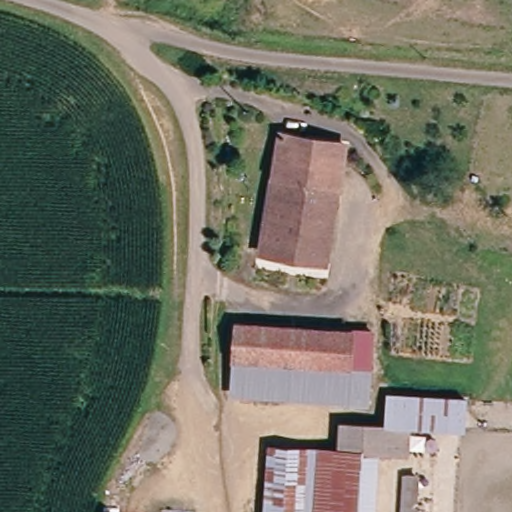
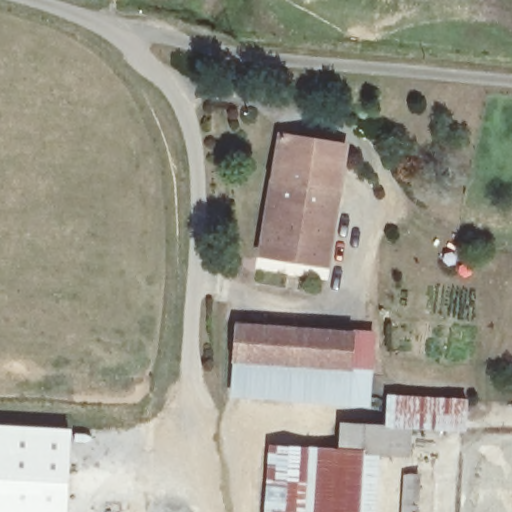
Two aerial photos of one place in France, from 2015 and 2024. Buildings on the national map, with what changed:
unchanged [(332,264),(267,256),(279,150),(280,140),(347,146),(344,166),(332,264)]
unchanged [(334,372),(241,367),(241,330),(373,335),(368,401),(332,399),(334,372)]
unchanged [(240,394),(241,367),(334,372),(332,399),(240,394)]
unchanged [(369,512),(316,512),(319,450),(345,451),(346,419),(392,422),(391,394),(409,394),(458,397),(468,397),(467,432),(418,430),(416,454),(372,452),(369,512)]
new [(0,426),(72,430),(67,512),(0,512),(0,426)]
unchanged [(270,448),(319,450),(316,512),(267,512),(270,448)]
unchanged [(402,476),(435,476),(432,512),(401,512),(402,476)]

